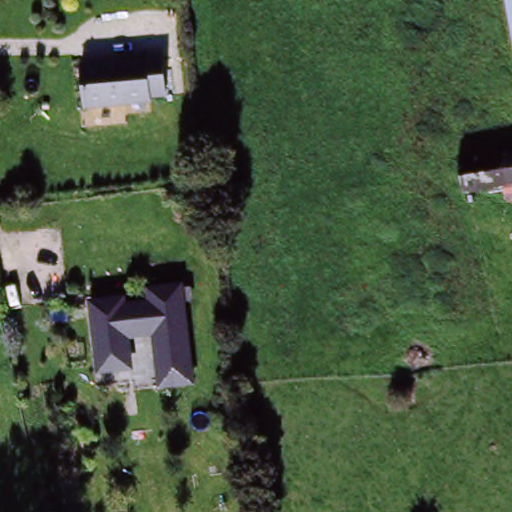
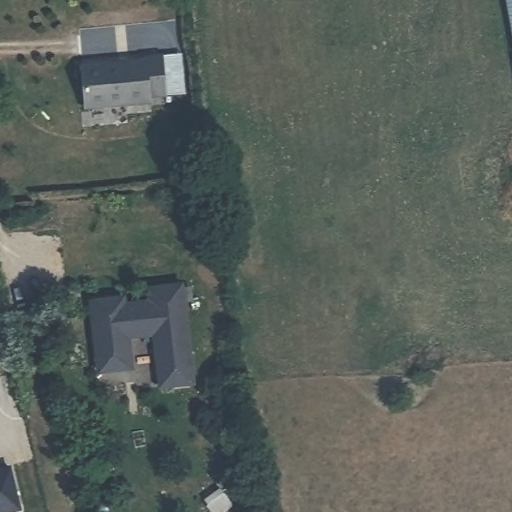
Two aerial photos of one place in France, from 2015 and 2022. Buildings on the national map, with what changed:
unchanged [(507,1),(512,1),(512,50),(507,1)]
unchanged [(152,100),(152,106),(87,111),(84,68),(149,64),(150,60),(167,60),(169,99),(152,100)]
unchanged [(461,194),(457,166),(512,159),(512,187),(461,194)]
unchanged [(100,367),(97,352),(89,303),(149,303),(149,287),(179,284),(188,379),(157,384),(152,324),(130,327),(132,350),(131,363),(100,367)]
new [(20,509),(5,512),(0,512),(0,468),(10,466),(20,509)]

